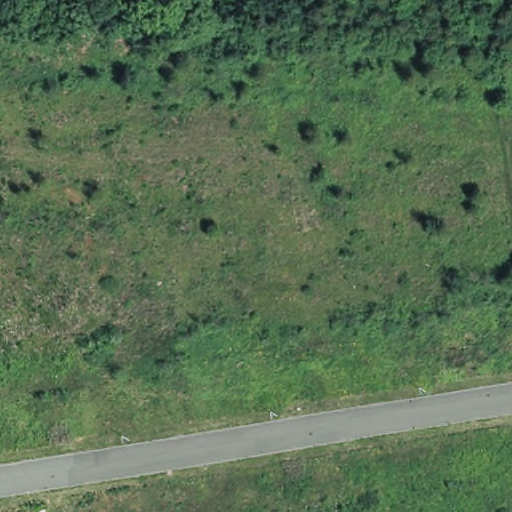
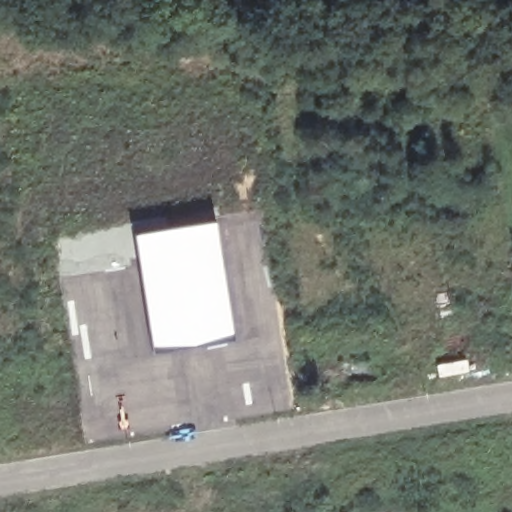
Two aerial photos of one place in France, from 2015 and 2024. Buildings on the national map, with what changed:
new [(215,220),(233,337),(191,344),(151,347),(133,232),(215,220)]

